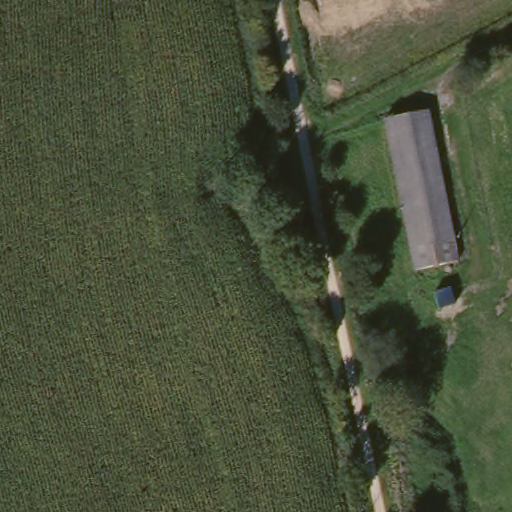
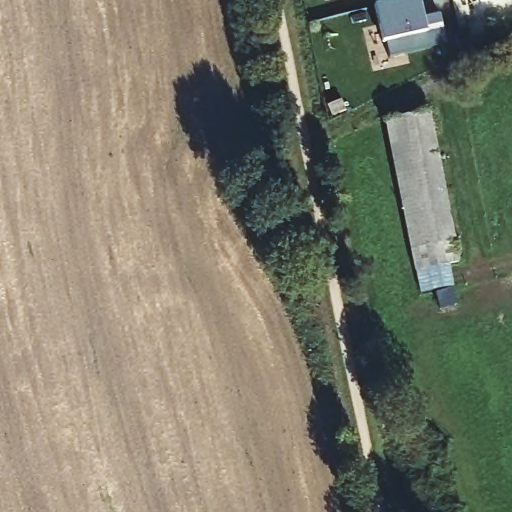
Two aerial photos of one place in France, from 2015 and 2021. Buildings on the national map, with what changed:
new [(410,0),(415,0),(418,13),(420,20),(437,16),(444,47),(387,61),(375,9),(404,2),(410,0)]
unchanged [(480,2),(480,0),(486,0),(480,2)]
unchanged [(383,122),(429,113),(460,263),(414,272),(383,122)]

